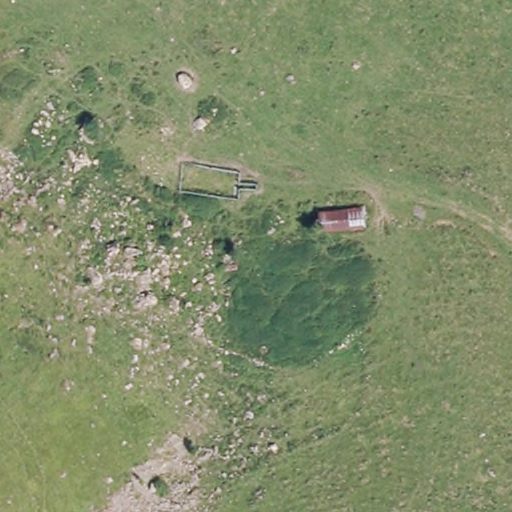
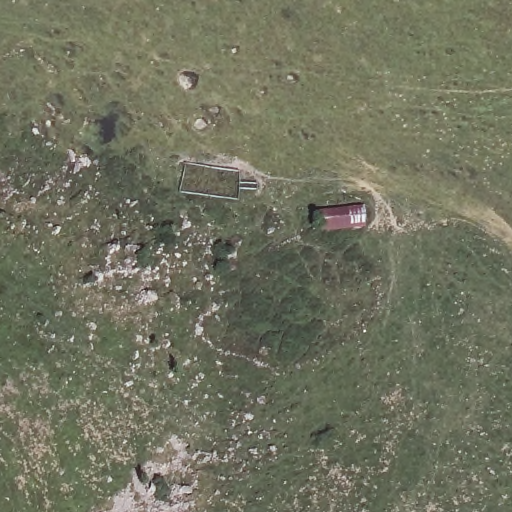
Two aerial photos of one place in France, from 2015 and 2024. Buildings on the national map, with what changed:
unchanged [(331,234),(324,214),(364,204),(369,224),(331,234)]

